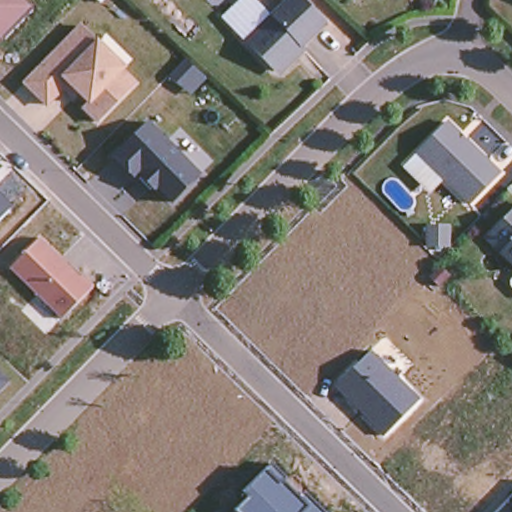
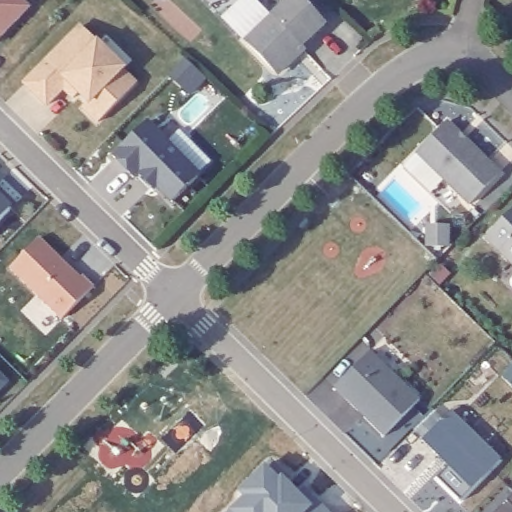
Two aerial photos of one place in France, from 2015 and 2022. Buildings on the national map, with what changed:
unchanged [(30,6),(0,37),(0,0),(25,0),(30,6)]
unchanged [(290,62),(279,72),(272,71),(243,41),(286,0),(301,0),(322,23),(300,47),(302,49),(290,62)]
unchanged [(60,91),(45,107),(22,86),(78,29),(97,46),(122,71),(120,72),(134,86),(95,124),(82,110),(87,104),(77,95),(71,101),(60,91)]
new [(180,97),(174,92),(160,78),(177,62),(190,75),(196,81),(180,97)]
unchanged [(500,173),(469,204),(417,152),(447,122),(500,173)]
unchanged [(140,180),(135,175),(132,179),(111,157),(146,125),(197,177),(170,203),(154,186),(150,190),(140,180)]
unchanged [(14,210),(0,224),(0,195),(14,210)]
unchanged [(512,213),(512,258),(489,236),(512,213)]
demolished [(407,259),(381,285),(357,262),(383,236),(407,259)]
unchanged [(37,239),(78,278),(80,277),(91,287),(59,320),(7,269),(37,239)]
unchanged [(336,386),(370,351),(420,398),(385,435),(336,386)]
unchanged [(0,391),(0,374),(9,382),(0,391)]
new [(502,458),(472,488),(461,501),(437,477),(447,466),(422,441),(452,410),(502,458)]
unchanged [(248,497),(243,492),(267,470),(272,465),(285,478),(282,481),(300,497),(305,492),(323,512),(233,512),(234,511),(248,497)]
unchanged [(512,512),(496,512),(512,495),(512,512)]

